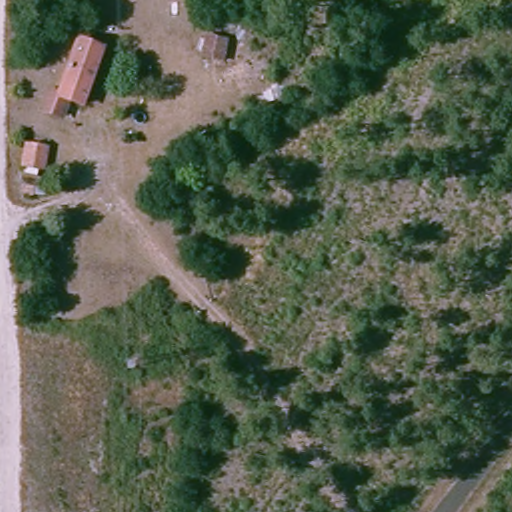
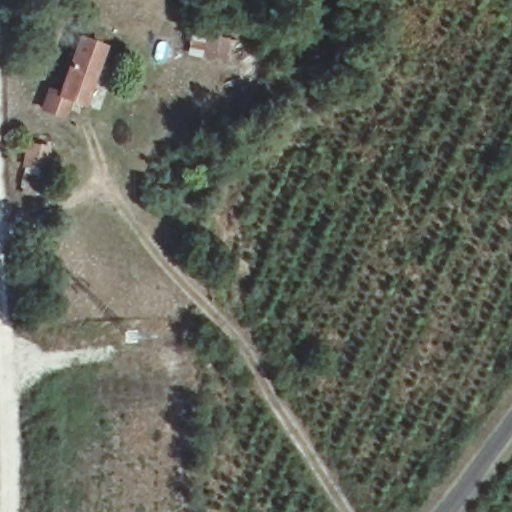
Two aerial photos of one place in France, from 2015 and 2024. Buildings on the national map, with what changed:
unchanged [(106,44),(69,111),(64,107),(51,120),(25,108),(37,85),(48,88),(84,33),(106,44)]
unchanged [(13,173),(19,140),(47,146),(45,170),(48,191),(19,203),(13,173)]

